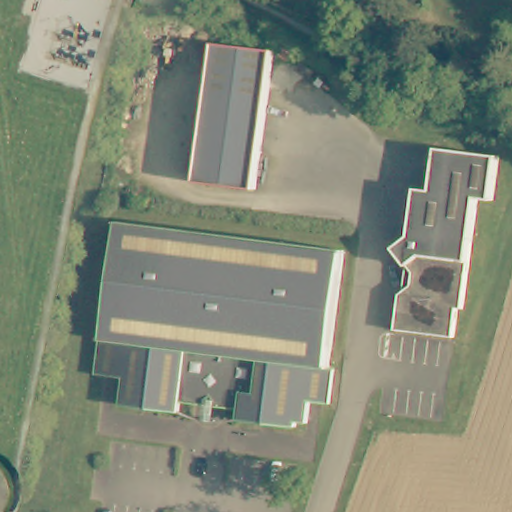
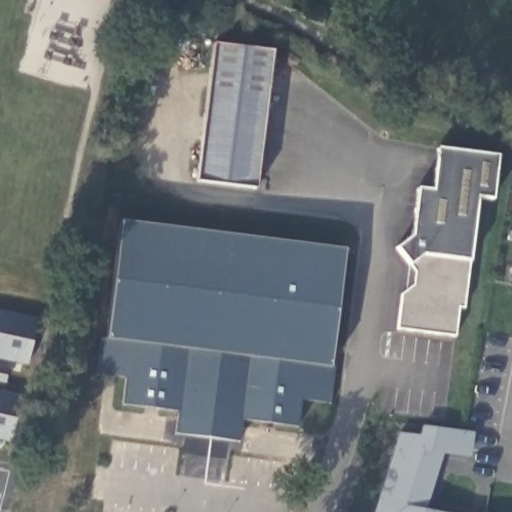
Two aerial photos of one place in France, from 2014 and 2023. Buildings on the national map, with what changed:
unchanged [(216,51),(274,57),(256,195),(198,187),(216,51)]
unchanged [(499,203),(481,201),(468,307),(464,307),(461,340),(401,333),(404,305),(416,295),(417,272),(406,262),(409,248),(416,244),(422,193),(439,195),(444,151),(504,158),(499,203)]
unchanged [(238,420),(239,410),(181,402),(179,413),(121,405),(125,379),(95,374),(99,341),(107,342),(119,222),(345,251),(329,370),(337,371),(333,404),(313,401),(301,400),(298,426),(238,420)]
new [(400,433),(420,435),(423,426),(475,432),(471,458),(445,454),(427,510),(437,512),(375,512),(400,433)]

